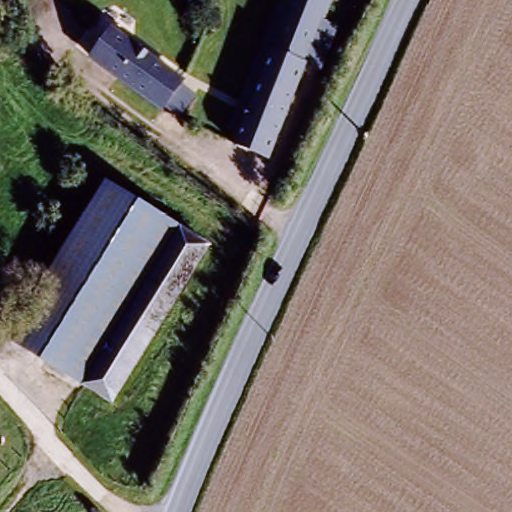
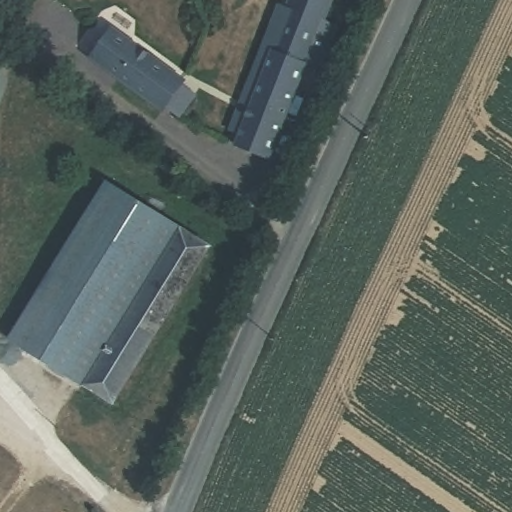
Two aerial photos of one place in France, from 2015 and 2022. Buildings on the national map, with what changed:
unchanged [(335,0),(266,167),(231,153),(293,0),(335,0)]
unchanged [(103,27),(105,24),(207,96),(182,130),(82,56),(103,27)]
unchanged [(5,332),(106,178),(183,225),(81,382),(5,332)]
unchanged [(183,225),(212,244),(113,403),(81,382),(183,225)]

